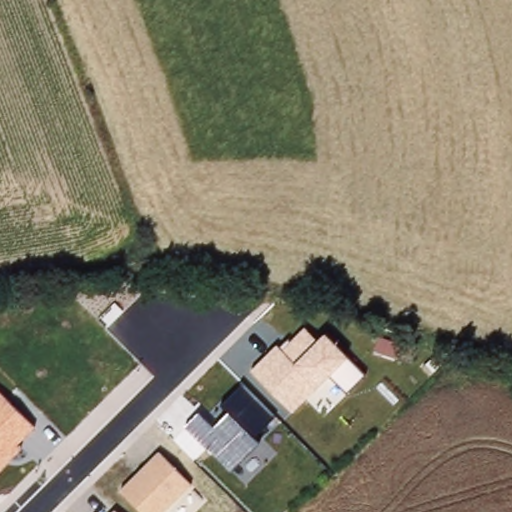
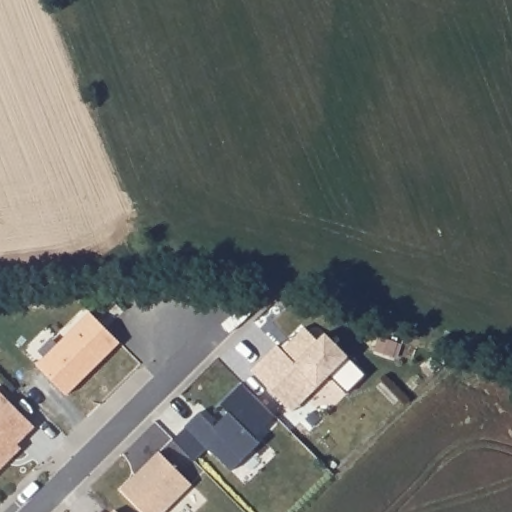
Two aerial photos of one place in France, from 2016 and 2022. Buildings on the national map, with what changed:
new [(91,314),(120,344),(68,397),(38,367),(91,314)]
unchanged [(252,370),(278,344),(283,348),(305,327),(318,339),(324,333),(347,356),(365,375),(346,391),(330,376),(318,387),(291,411),(252,370)]
unchanged [(186,426),(200,413),(214,428),(230,412),(223,405),(242,386),(275,418),(256,437),(260,441),(230,470),(186,426)]
unchanged [(34,426),(16,445),(21,450),(0,469),(0,391),(34,426)]
unchanged [(161,512),(144,512),(121,491),(158,452),(190,485),(161,512)]
unchanged [(116,510),(118,512),(113,512),(116,510)]

